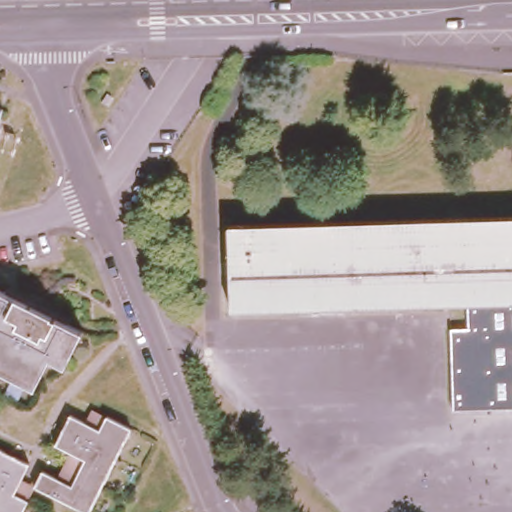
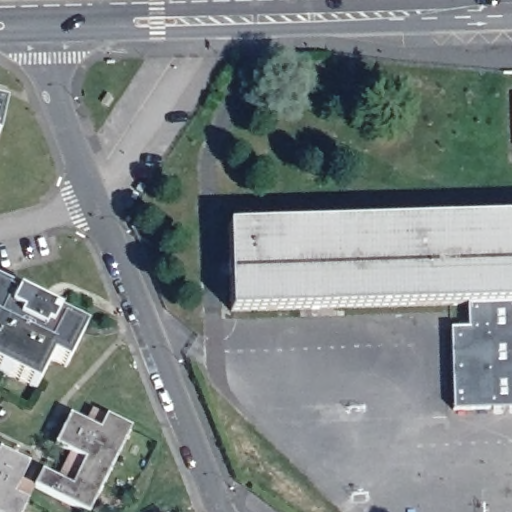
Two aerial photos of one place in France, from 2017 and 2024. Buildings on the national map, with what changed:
unchanged [(0,112),(0,105),(2,105),(0,112)]
unchanged [(449,410),(449,328),(467,328),(467,304),(232,311),(230,226),(512,217),(512,409),(449,410)]
unchanged [(35,388),(0,371),(0,291),(83,332),(65,367),(50,359),(35,388)]
unchanged [(35,485),(42,472),(67,484),(82,456),(57,444),(71,415),(97,428),(104,415),(130,428),(88,511),(35,485)]
unchanged [(14,494),(27,501),(22,512),(0,512),(0,452),(27,465),(14,494)]

